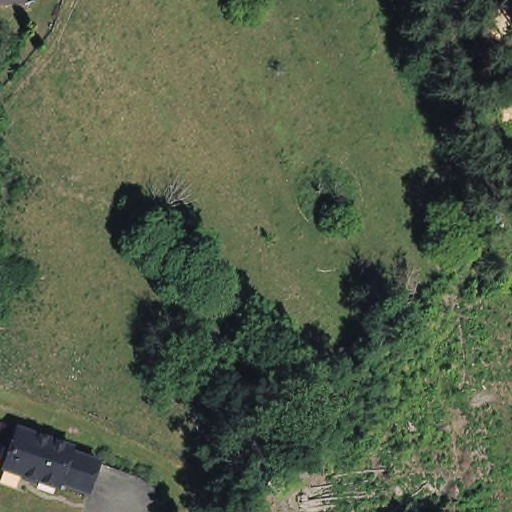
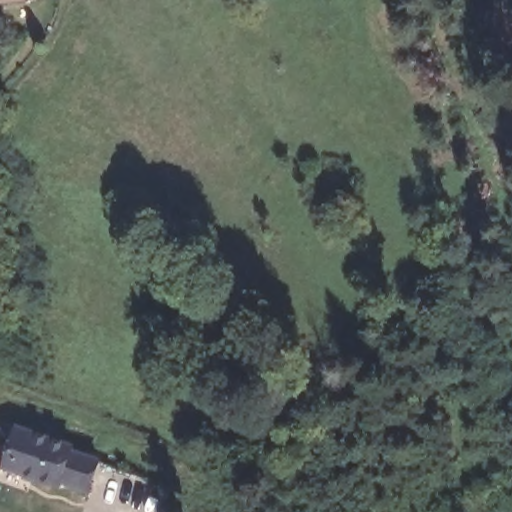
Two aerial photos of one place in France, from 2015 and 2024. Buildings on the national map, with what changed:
unchanged [(29,3),(0,8),(0,0),(29,0),(29,3)]
unchanged [(56,486),(55,488),(1,471),(14,431),(68,448),(70,449),(68,453),(79,457),(88,460),(97,463),(94,471),(85,496),(56,486)]

